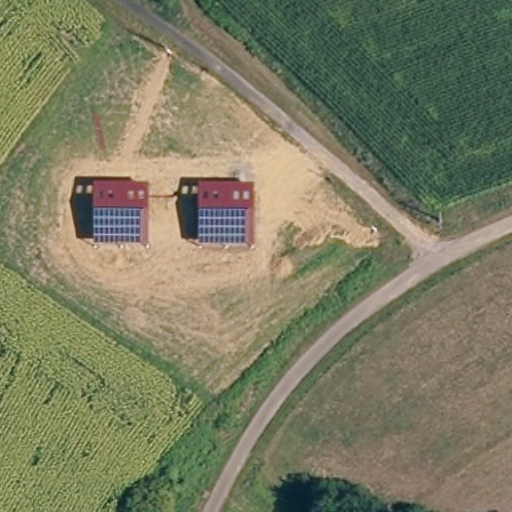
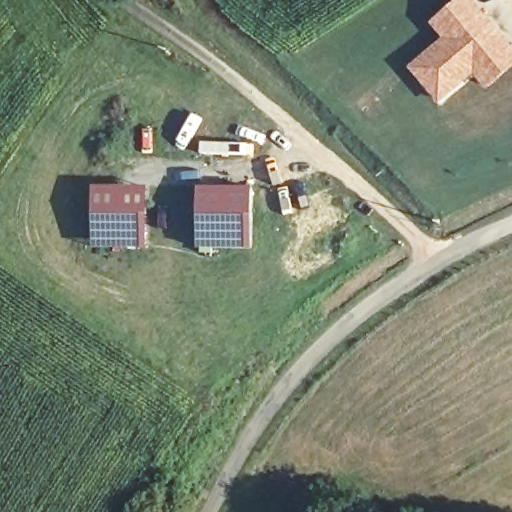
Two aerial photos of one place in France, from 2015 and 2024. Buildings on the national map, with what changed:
new [(455,0),(473,0),(512,44),(512,70),(486,91),(474,78),(439,106),(406,66),(440,38),(427,22),(455,0)]
unchanged [(149,247),(94,246),(95,185),(149,186),(149,247)]
unchanged [(255,248),(200,246),(200,187),(254,186),(255,248)]

